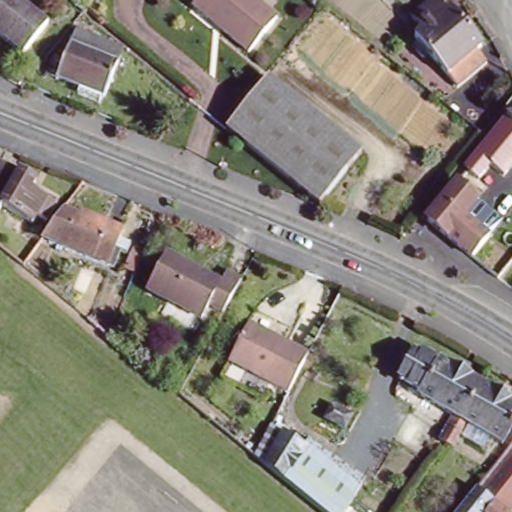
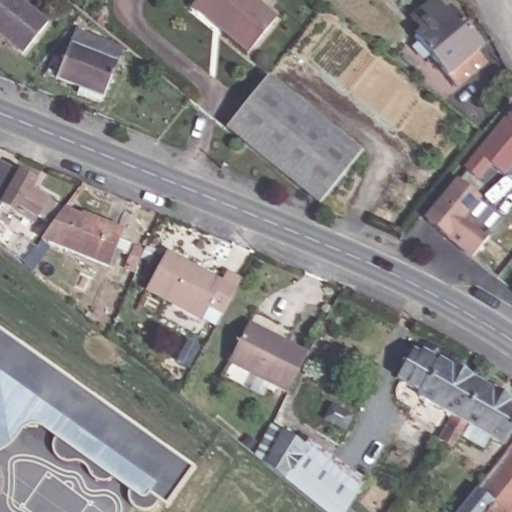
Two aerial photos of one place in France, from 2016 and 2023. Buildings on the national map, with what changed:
unchanged [(19,0),(48,24),(23,55),(0,36),(0,0),(19,0)]
unchanged [(221,30),(191,5),(195,0),(255,0),(277,17),(247,52),(221,30)]
unchanged [(423,29),(413,15),(434,0),(437,0),(445,11),(452,7),(482,47),(478,50),(488,64),(457,86),(417,34),(423,29)]
unchanged [(74,34),(122,54),(110,85),(62,66),(74,34)]
unchanged [(222,131),(265,80),(361,154),(320,207),(222,131)]
unchanged [(465,169),(512,112),(512,165),(505,174),(492,164),(480,180),(466,170),(465,169)]
unchanged [(30,185),(25,192),(48,206),(39,221),(31,216),(26,225),(0,208),(0,167),(30,185)]
unchanged [(420,215),(450,178),(471,194),(458,210),(487,231),(469,252),(420,215)]
unchanged [(56,211),(77,220),(78,216),(117,232),(101,267),(35,240),(56,211)]
unchanged [(143,281),(165,245),(170,247),(218,275),(224,265),(239,273),(220,307),(205,300),(197,312),(153,287),(143,281)]
unchanged [(247,325),(307,354),(287,393),(227,362),(247,325)]
new [(20,343),(22,342),(76,381),(75,383),(93,396),(94,395),(149,434),(148,435),(165,448),(167,447),(196,468),(167,509),(159,503),(157,507),(151,511),(149,512),(141,512),(138,511),(133,507),(130,500),(130,493),(130,492),(113,480),(109,482),(105,483),(99,482),(95,480),(92,477),(87,467),(83,465),(77,462),(65,463),(59,460),(55,456),(55,452),(54,445),(57,439),(42,429),(39,428),(36,429),(30,429),(23,426),(21,423),(17,420),(13,420),(8,420),(7,419),(4,417),(0,415),(0,414),(0,393),(2,392),(3,391),(5,391),(0,387),(0,329),(20,343)]
unchanged [(442,423),(440,421),(447,410),(442,407),(437,415),(420,405),(425,397),(415,390),(417,385),(395,371),(413,343),(435,356),(437,355),(480,380),(440,438),(435,435),(442,423)]
unchanged [(512,399),(512,416),(497,441),(485,433),(480,442),(467,434),(472,426),(467,422),(460,433),(455,431),(447,443),(440,438),(480,380),(512,399)]
new [(5,391),(3,391),(2,392),(0,393),(0,387),(5,391)]
unchanged [(331,405),(350,413),(344,427),(325,418),(331,405)]
new [(0,415),(4,417),(7,419),(8,420),(13,420),(17,420),(21,423),(23,426),(30,429),(27,430),(23,433),(17,441),(16,443),(8,450),(0,454),(0,414),(0,415)]
unchanged [(254,457),(280,426),(308,448),(283,484),(254,457)]
unchanged [(512,437),(512,501),(504,511),(472,486),(512,437)]
unchanged [(308,448),(314,439),(368,480),(342,512),(315,512),(283,484),(308,448)]
unchanged [(472,486),(504,511),(505,512),(452,512),(472,486)]

